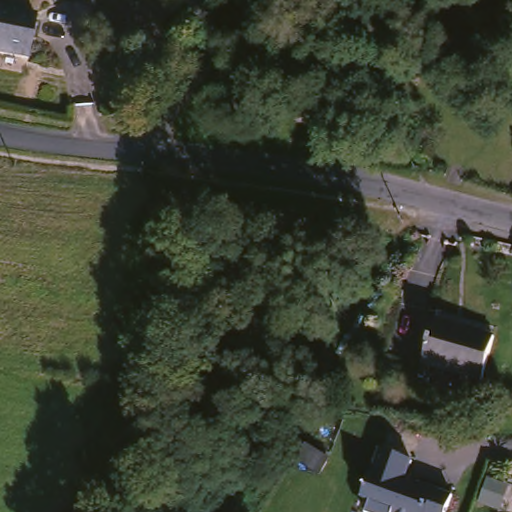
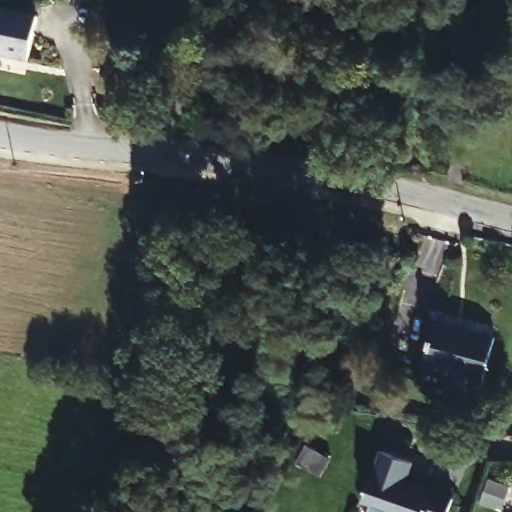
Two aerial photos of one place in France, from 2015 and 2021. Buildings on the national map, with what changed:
unchanged [(0,56),(0,7),(37,19),(26,65),(0,56)]
unchanged [(486,384),(424,366),(435,320),(496,337),(486,384)]
unchanged [(367,506),(383,455),(416,466),(410,485),(460,501),(457,512),(375,512),(376,509),(367,506)]
unchanged [(494,476),(512,483),(503,505),(485,498),(494,476)]

